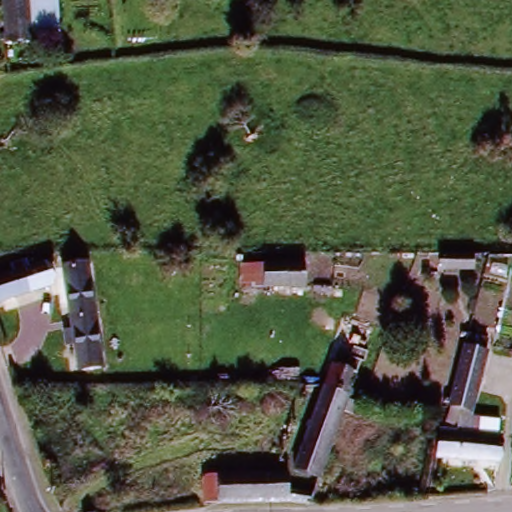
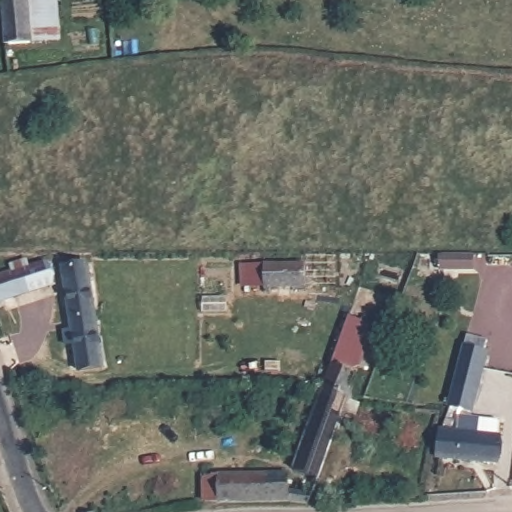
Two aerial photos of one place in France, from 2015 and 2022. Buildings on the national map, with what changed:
unchanged [(20,0),(58,0),(61,44),(5,47),(1,2),(20,0)]
unchanged [(485,269),(457,270),(457,254),(486,252),(485,269)]
unchanged [(53,259),(61,285),(0,306),(0,277),(53,259)]
unchanged [(266,261),(307,260),(305,291),(264,291),(266,261)]
unchanged [(85,264),(104,376),(84,378),(67,266),(85,264)]
unchanged [(464,345),(467,333),(491,340),(472,417),(481,419),(479,431),(506,435),(503,463),(437,460),(464,345)]
unchanged [(366,346),(321,475),(293,465),(339,337),(366,346)]
unchanged [(270,478),(281,478),(309,485),(306,502),(271,502),(205,505),(207,481),(270,478)]

